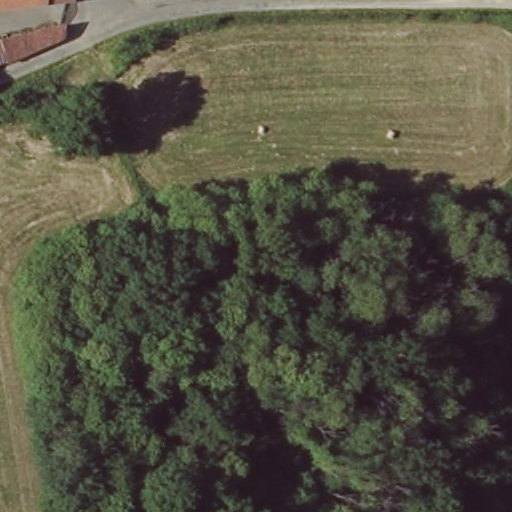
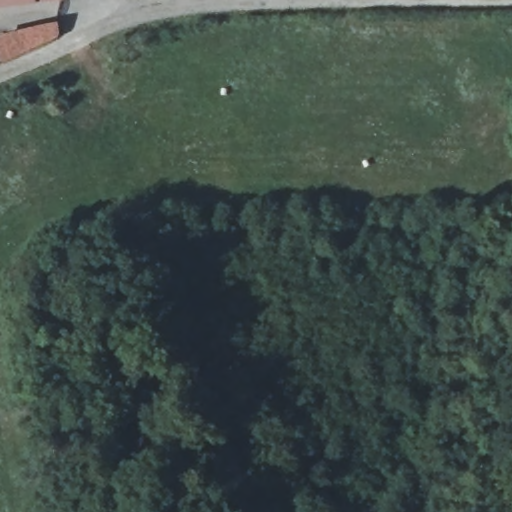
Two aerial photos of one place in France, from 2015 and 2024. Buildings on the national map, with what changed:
unchanged [(6,65),(2,67),(0,57),(0,45),(52,22),(54,22),(54,41),(33,52),(6,65)]

